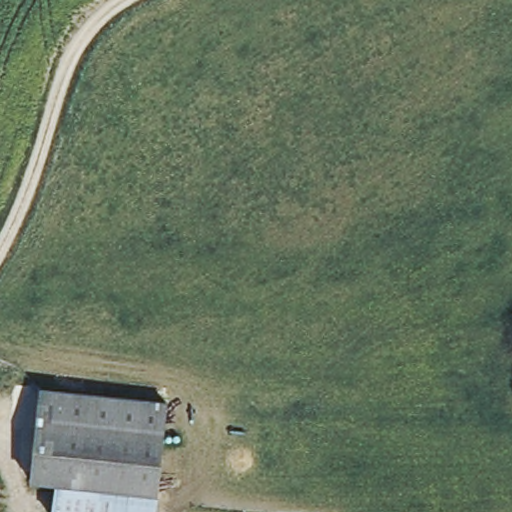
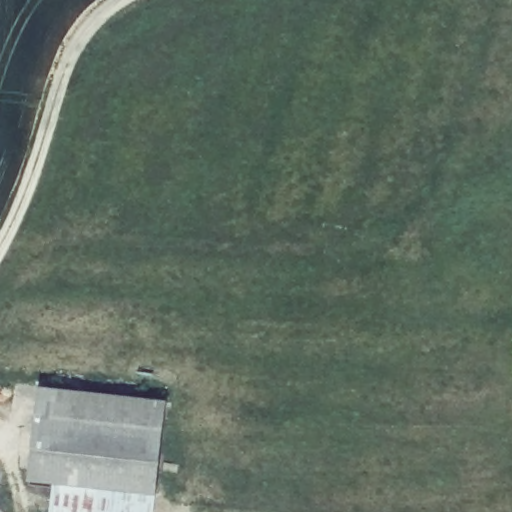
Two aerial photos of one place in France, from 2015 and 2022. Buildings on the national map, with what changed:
unchanged [(30,479),(38,387),(164,401),(155,492),(54,481),(30,479)]
unchanged [(153,512),(52,512),(54,481),(155,492),(153,512)]

